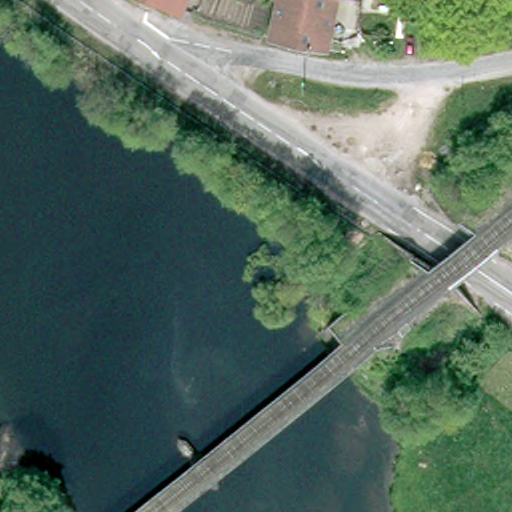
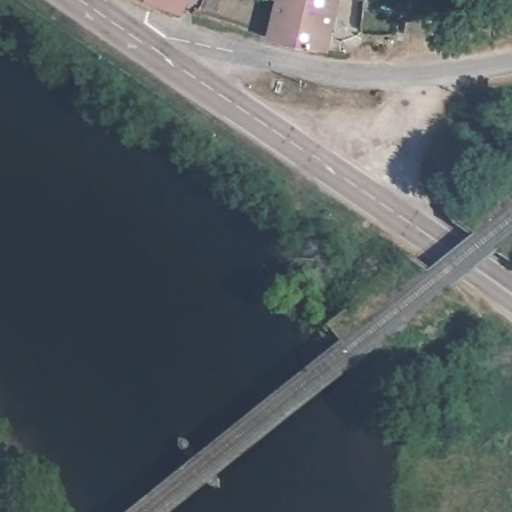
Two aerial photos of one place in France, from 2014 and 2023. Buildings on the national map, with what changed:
unchanged [(143,0),(183,0),(176,15),(143,0)]
unchanged [(271,47),(279,10),(275,6),(276,0),(358,0),(356,7),(339,4),(328,58),(271,47)]

